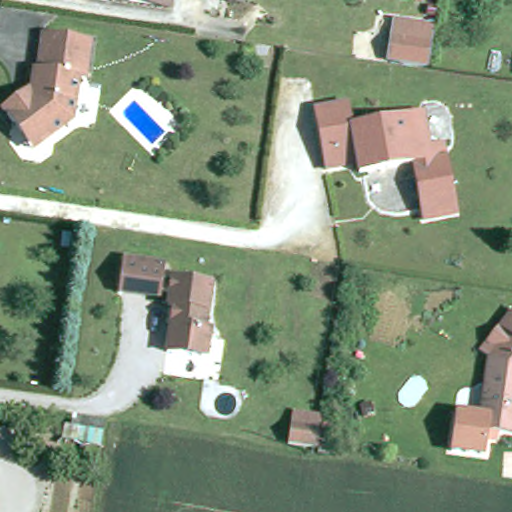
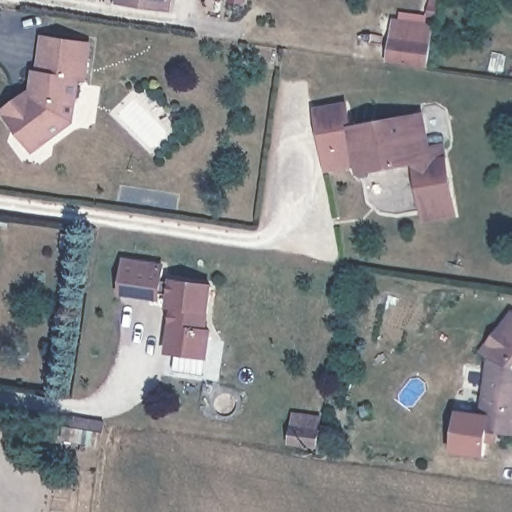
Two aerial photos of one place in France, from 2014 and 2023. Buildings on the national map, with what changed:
unchanged [(125,1),(125,0),(176,0),(175,7),(125,1)]
unchanged [(389,59),(393,34),(395,20),(437,26),(434,40),(430,67),(389,59)]
unchanged [(20,133),(7,115),(32,97),(36,70),(40,70),(45,36),(90,42),(85,78),(79,77),(73,121),(42,144),(33,149),(20,133)]
unchanged [(426,218),(415,162),(362,172),(360,164),(325,170),(314,109),(349,103),(354,125),(424,112),(430,145),(444,142),(459,212),(426,218)]
unchanged [(167,347),(172,322),(176,315),(177,307),(169,303),(170,292),(158,291),(158,295),(120,290),(125,257),(164,263),(162,276),(212,283),(205,329),(211,330),(207,354),(167,347)]
unchanged [(485,431),(483,456),(445,452),(449,406),(485,410),(492,353),(484,346),(512,310),(512,311),(512,432),(485,431)]
unchanged [(290,441),(293,420),(294,410),(325,413),(324,423),(320,445),(290,441)]
unchanged [(90,440),(60,437),(62,418),(93,422),(90,440)]

